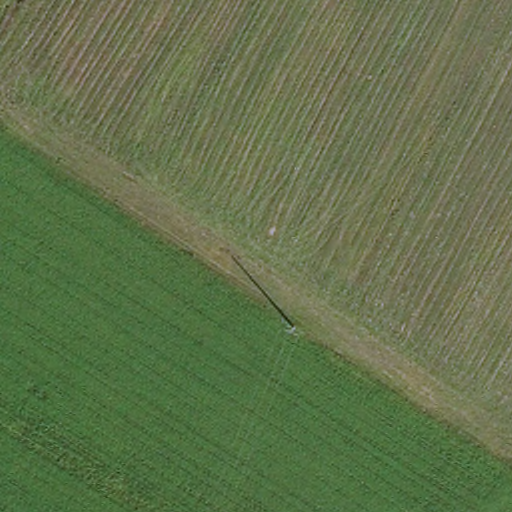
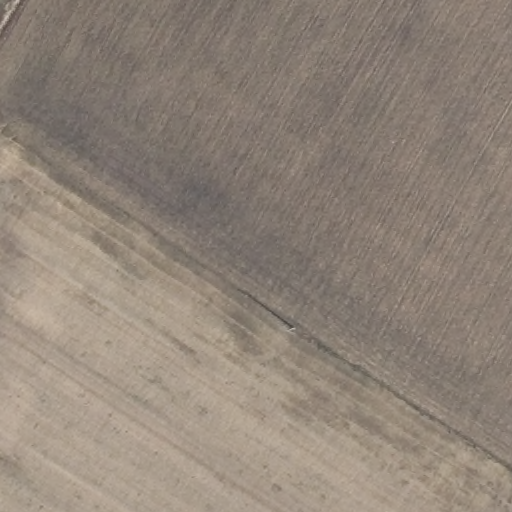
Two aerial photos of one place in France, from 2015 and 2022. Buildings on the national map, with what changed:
[]

